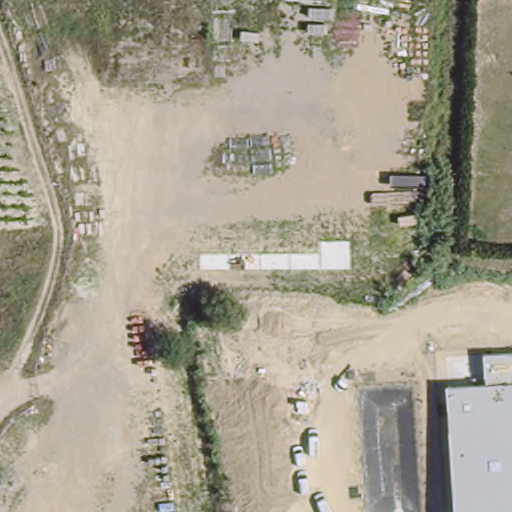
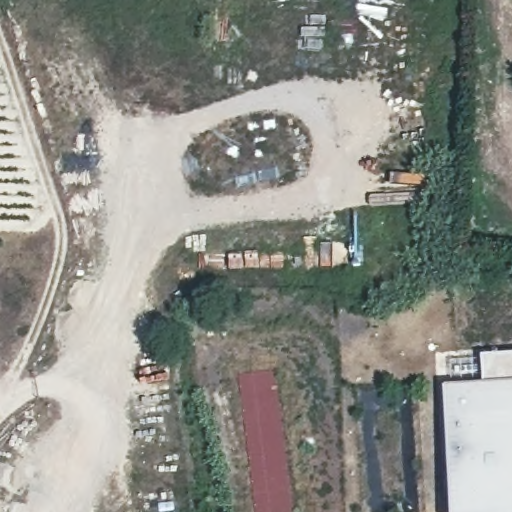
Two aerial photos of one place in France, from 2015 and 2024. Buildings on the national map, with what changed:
unchanged [(487,383),(483,355),(512,353),(512,512),(455,512),(446,386),(487,383)]
new [(275,370),(295,511),(291,512),(257,512),(238,374),(275,370)]

